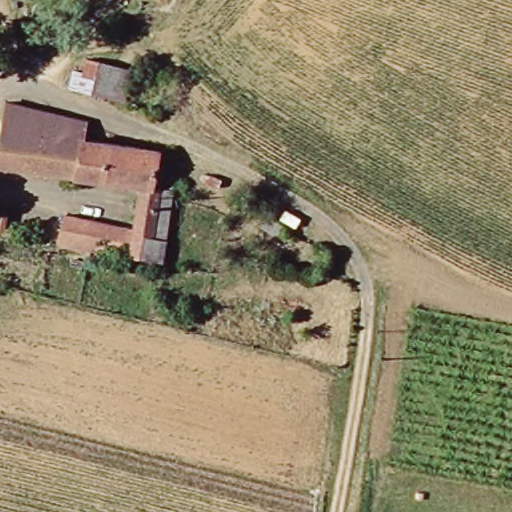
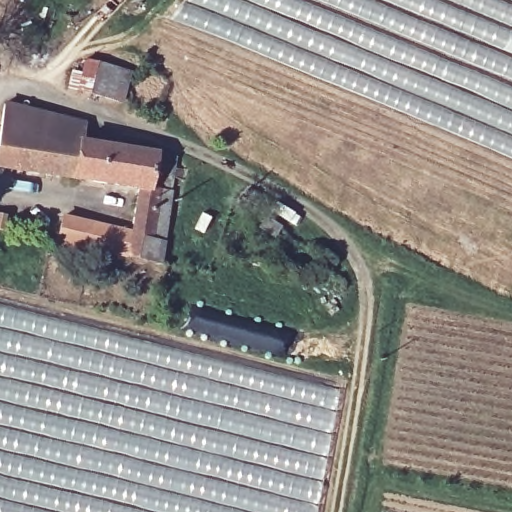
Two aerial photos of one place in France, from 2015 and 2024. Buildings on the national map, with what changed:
unchanged [(70,74),(80,75),(82,66),(127,72),(125,101),(69,93),(70,74)]
unchanged [(15,105),(20,106),(89,120),(86,134),(179,155),(156,256),(65,237),(69,216),(132,225),(137,191),(2,172),(15,105)]
unchanged [(5,209),(25,212),(23,228),(3,225),(5,209)]
new [(222,362),(271,371),(341,388),(336,411),(150,363),(0,326),(0,304),(132,335),(222,362)]
new [(189,311),(222,320),(223,315),(217,313),(219,309),(250,315),(294,329),(285,359),(182,333),(189,311)]
new [(336,411),(332,433),(140,384),(77,371),(0,352),(0,326),(150,363),(336,411)]
new [(140,384),(332,433),(327,456),(74,392),(0,376),(0,352),(77,371),(140,384)]
new [(327,456),(317,512),(253,512),(105,474),(0,449),(0,376),(74,392),(327,456)]
new [(253,512),(0,512),(0,449),(105,474),(253,512)]

